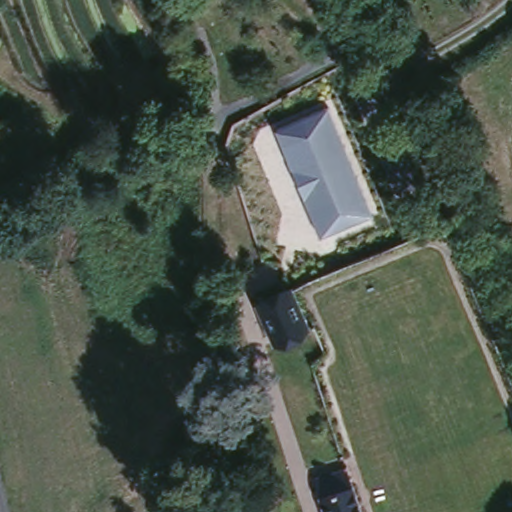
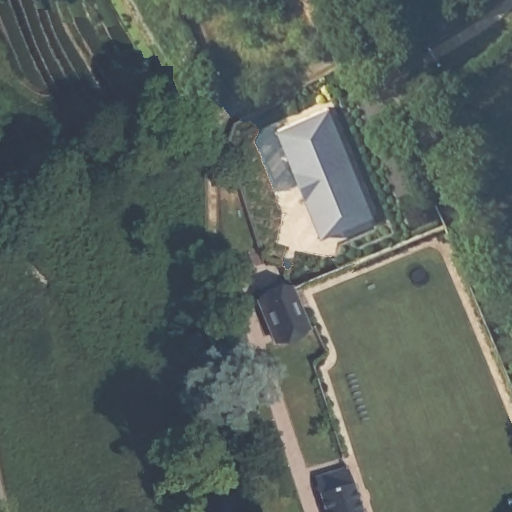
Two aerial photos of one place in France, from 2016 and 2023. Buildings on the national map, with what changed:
unchanged [(374,215),(318,237),(274,126),(329,105),(374,215)]
unchanged [(257,292),(289,283),(308,328),(275,340),(257,292)]
unchanged [(234,393),(242,407),(224,421),(218,407),(234,393)]
unchanged [(356,477),(367,512),(323,512),(315,490),(356,477)]

